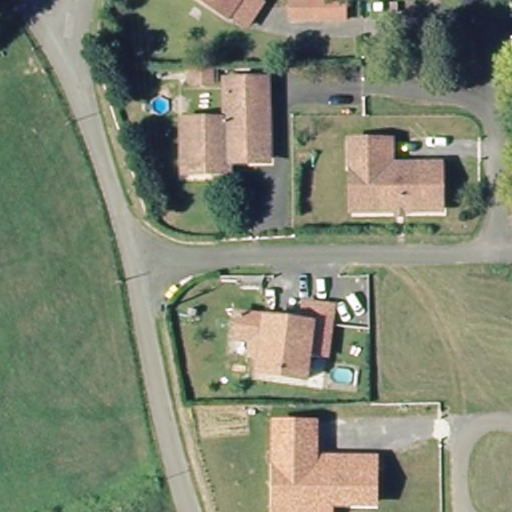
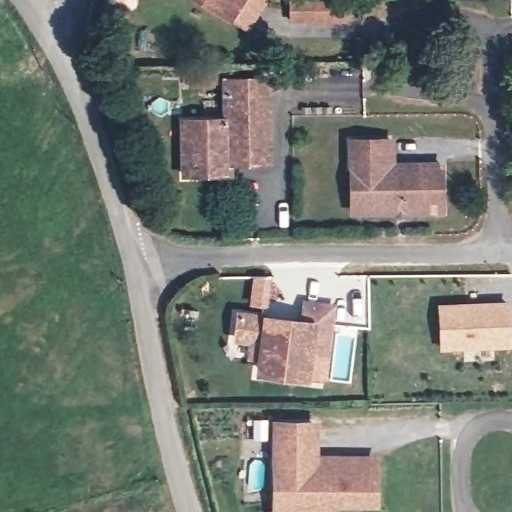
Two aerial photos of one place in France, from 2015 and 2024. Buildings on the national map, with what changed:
unchanged [(207,0),(242,0),(232,16),(207,0)]
unchanged [(303,20),(303,0),(332,0),(332,20),(303,20)]
unchanged [(207,121),(230,121),(229,83),(271,83),(274,166),(234,166),(234,175),(192,176),(191,148),(191,121),(207,121)]
unchanged [(168,84),(191,85),(191,104),(168,104),(168,84)]
unchanged [(344,143),(388,141),(390,168),(436,166),(438,211),(368,213),(345,214),(344,171),(344,143)]
new [(510,299),(512,337),(512,347),(438,351),(436,303),(510,299)]
unchanged [(265,378),(265,365),(253,364),(253,349),(238,349),(238,324),(302,326),(302,308),(329,309),(327,356),(310,355),(310,369),(309,379),(288,378),(265,378)]
unchanged [(319,419),(319,456),(379,456),(378,508),(334,508),(334,512),(271,512),(272,419),(319,419)]

